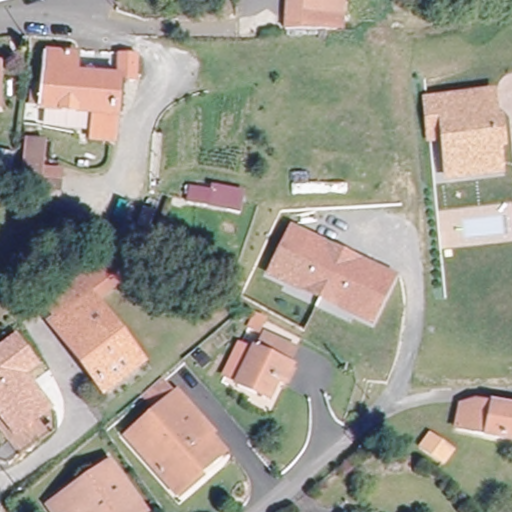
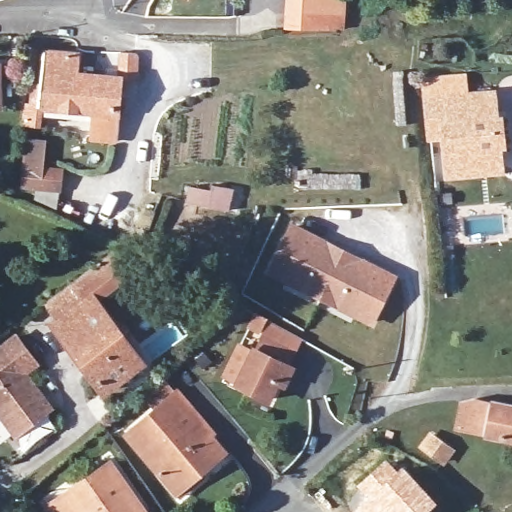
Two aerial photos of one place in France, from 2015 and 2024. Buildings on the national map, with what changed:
unchanged [(343,0),(344,6),(346,24),(293,29),(290,11),(289,0),(343,0)]
unchanged [(31,99),(39,99),(40,69),(70,69),(69,89),(112,89),(114,60),(130,59),(130,90),(119,90),(119,150),(89,151),(89,121),(39,120),(39,113),(31,114),(31,99)]
unchanged [(0,111),(0,90),(1,111),(0,111)]
unchanged [(471,173),(448,176),(444,136),(430,138),(426,99),(456,95),(492,91),(494,110),(499,154),(501,170),(471,173)]
unchanged [(55,140),(55,168),(67,169),(67,188),(43,187),(35,187),(36,140),(44,140),(55,140)]
unchanged [(213,189),(214,182),(247,190),(241,216),(184,202),(189,185),(213,189)]
unchanged [(308,290),(307,291),(271,274),(293,228),(329,245),(329,246),(359,260),(395,277),(373,322),(337,305),(338,304),(323,297),(308,290)]
unchanged [(79,284),(111,259),(128,280),(95,305),(79,284)]
unchanged [(141,370),(104,397),(55,330),(61,325),(48,309),(79,284),(95,305),(141,370)]
unchanged [(260,343),(249,337),(254,325),(265,331),(260,343)]
unchanged [(27,375),(54,409),(15,439),(0,419),(0,345),(16,333),(40,365),(27,375)]
unchanged [(241,361),(255,367),(264,346),(291,358),(284,375),(291,378),(279,403),(272,400),(267,411),(241,399),(242,397),(228,391),(241,361)]
unchanged [(170,492),(128,441),(160,414),(148,398),(166,383),(179,399),(183,395),(217,438),(213,442),(228,459),(209,474),(176,500),(170,492)]
unchanged [(475,406),(512,410),(512,442),(471,437),(475,406)]
unchanged [(446,464),(424,445),(434,432),(458,451),(446,464)]
new [(359,490),(356,487),(387,459),(398,469),(403,465),(438,502),(427,512),(355,512),(347,503),(359,490)]
unchanged [(100,462),(135,509),(130,512),(46,512),(41,506),(100,462)]

